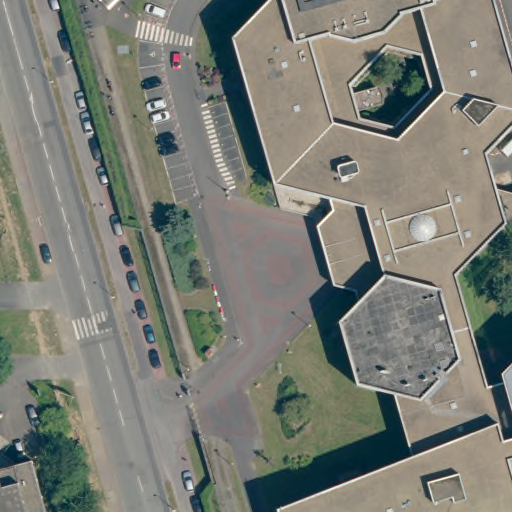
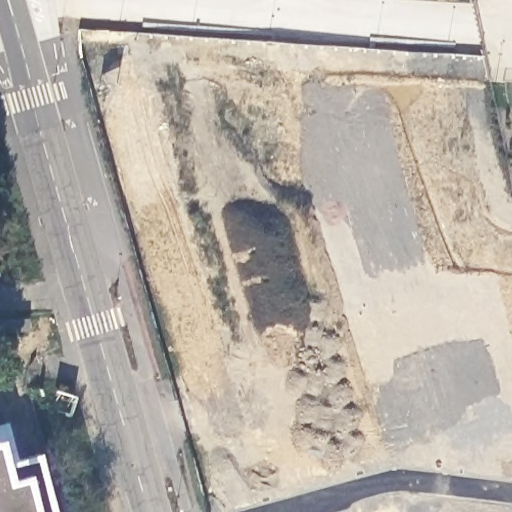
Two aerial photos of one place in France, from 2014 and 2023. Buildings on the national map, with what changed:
demolished [(512,67),(512,127),(485,154),(506,225),(456,275),(486,385),(501,381),(499,374),(512,361),(512,459),(509,460),(512,473),(512,512),(278,512),(277,509),(411,455),(394,394),(356,385),(339,321),(354,304),(383,276),(363,209),(326,199),(275,186),(232,40),(272,0),(493,0),(512,67)]
unchanged [(377,85),(381,91),(383,97),(382,103),(357,110),(352,92),(377,85)]
demolished [(326,199),(363,209),(383,276),(354,304),(353,286),(331,285),(316,226),(329,212),(326,199)]
unchanged [(32,459),(46,512),(0,512),(0,468),(15,464),(32,459)]

